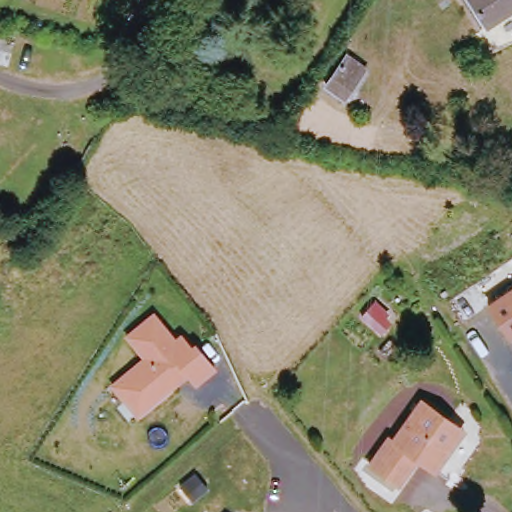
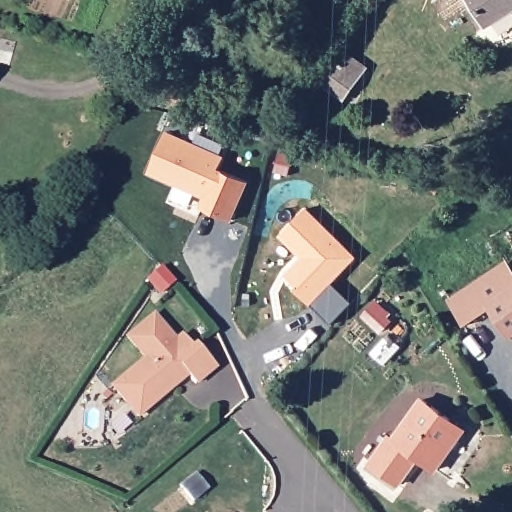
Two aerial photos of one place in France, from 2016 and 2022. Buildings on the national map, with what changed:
unchanged [(512,0),(512,10),(482,27),(468,0),(512,0)]
unchanged [(330,90),(348,61),(365,71),(346,99),(330,90)]
new [(200,208),(203,199),(148,175),(167,131),(225,159),(221,170),(251,184),(233,224),(200,208)]
new [(331,325),(310,305),(295,290),(297,288),(285,276),(307,255),(301,250),(299,251),(279,233),(305,209),(356,258),(332,282),(353,302),(331,325)]
new [(447,301),(506,260),(512,270),(512,297),(491,313),(464,326),(447,301)]
unchanged [(512,297),(512,341),(491,313),(512,297)]
unchanged [(378,335),(370,328),(360,318),(368,308),(372,304),(382,313),(380,317),(387,323),(378,335)]
unchanged [(175,335),(179,330),(190,342),(195,340),(217,366),(195,385),(187,376),(137,416),(108,383),(140,356),(123,335),(153,309),(175,335)]
demolished [(377,336),(368,347),(357,337),(367,327),(377,336)]
unchanged [(422,460),(403,491),(373,472),(390,441),(397,445),(422,401),(452,420),(470,429),(465,437),(443,471),(422,460)]

